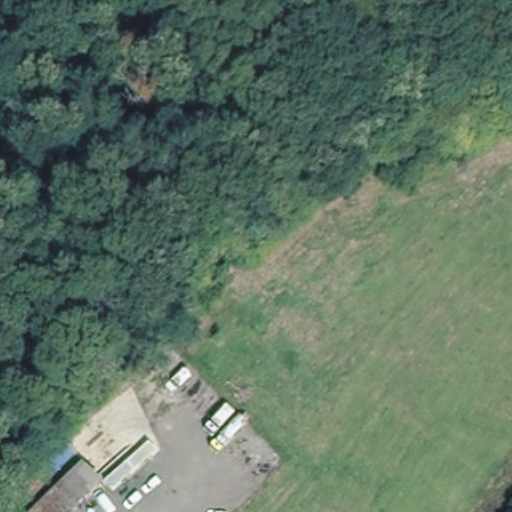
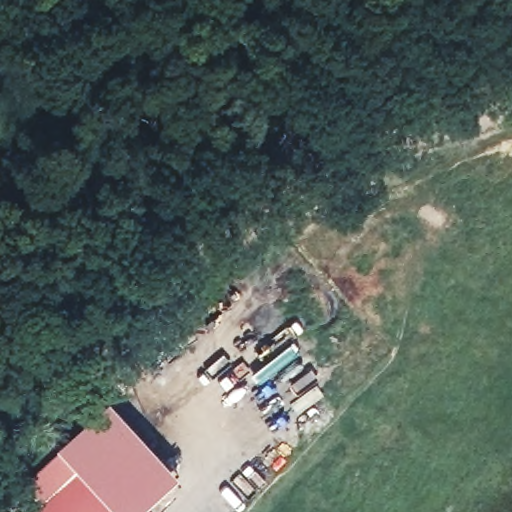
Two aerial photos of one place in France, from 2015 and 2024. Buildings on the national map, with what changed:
new [(23,485),(60,450),(57,449),(56,446),(107,397),(176,472),(133,512),(33,512),(42,503),(23,485)]
demolished [(81,507),(76,512),(31,512),(60,484),(81,507)]

